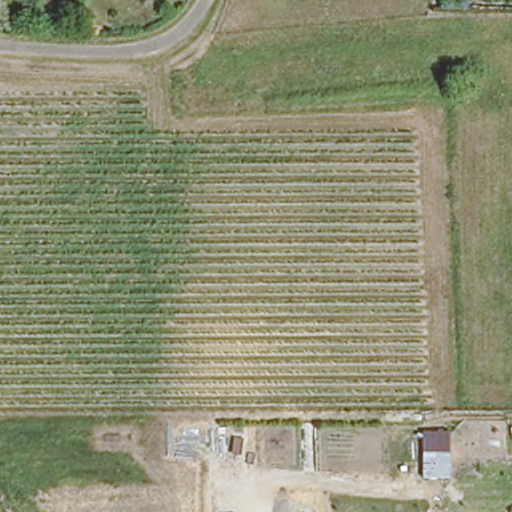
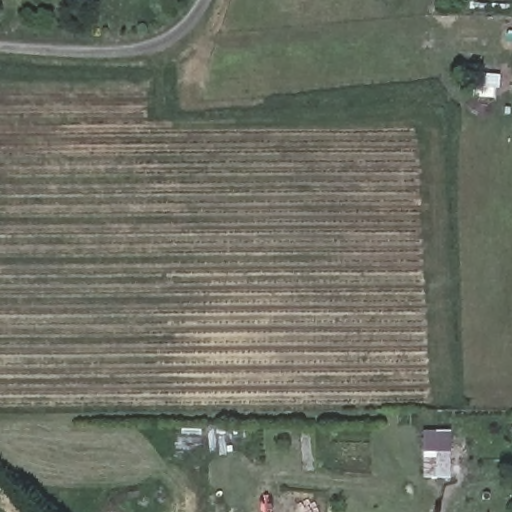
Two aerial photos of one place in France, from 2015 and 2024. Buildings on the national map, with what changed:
[]

